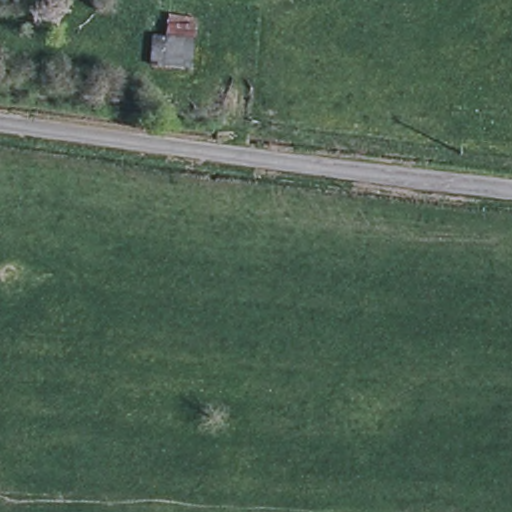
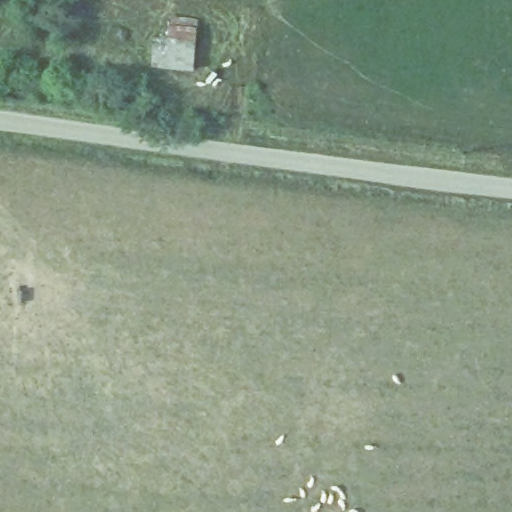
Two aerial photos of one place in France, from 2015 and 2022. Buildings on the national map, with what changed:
unchanged [(147,65),(155,22),(199,28),(192,69),(147,65)]

